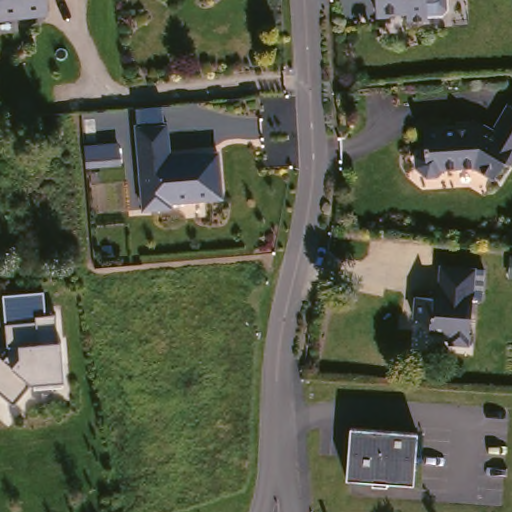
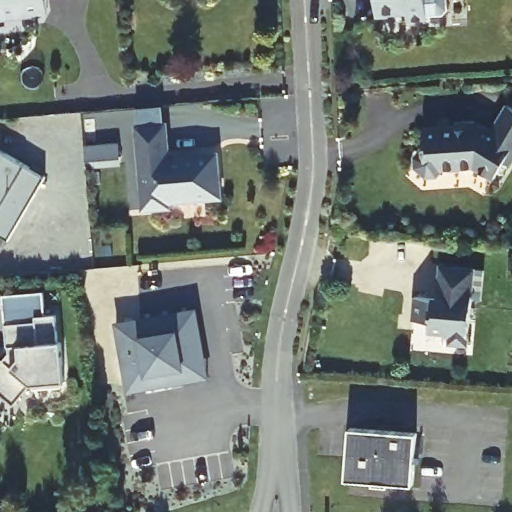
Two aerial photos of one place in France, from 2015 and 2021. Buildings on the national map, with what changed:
unchanged [(0,0),(35,0),(32,4),(33,8),(28,14),(16,15),(10,10),(0,11),(0,0)]
unchanged [(426,18),(406,20),(406,10),(393,10),(389,15),(376,16),(376,0),(426,0),(426,18)]
unchanged [(512,98),(512,155),(509,153),(499,171),(479,159),(448,164),(439,168),(429,169),(419,160),(418,150),(428,140),(426,122),(460,119),(460,121),(486,119),(494,124),(510,97),(512,98)]
unchanged [(174,204),(174,210),(143,212),(130,109),(164,107),(171,156),(216,153),(220,200),(174,204)]
unchanged [(119,141),(121,166),(84,169),(82,144),(119,141)]
unchanged [(466,339),(448,337),(449,332),(444,327),(427,325),(429,314),(412,312),(414,289),(437,292),(441,260),(475,264),(466,339)]
new [(123,386),(113,326),(192,312),(200,362),(203,380),(165,386),(140,390),(124,393),(123,386)]
unchanged [(0,359),(1,360),(8,348),(6,323),(33,322),(34,314),(54,314),(60,341),(63,382),(31,385),(13,406),(0,396),(0,359)]
unchanged [(418,431),(413,482),(386,480),(386,485),(371,484),(371,479),(346,476),(351,425),(418,431)]

